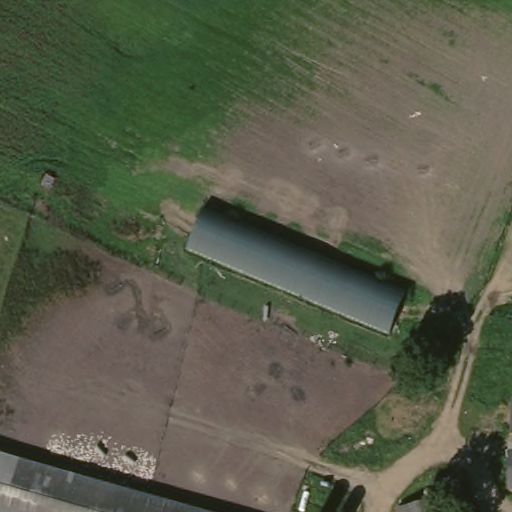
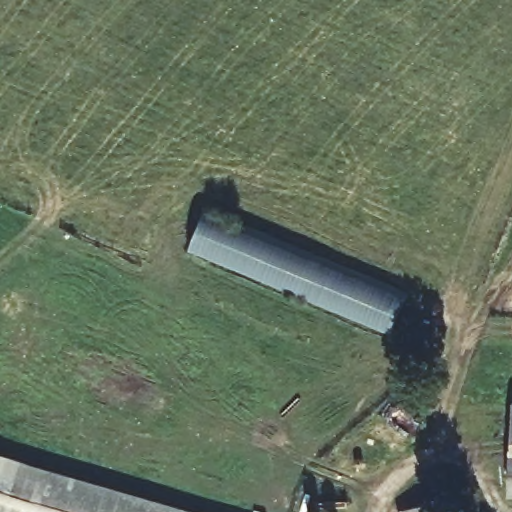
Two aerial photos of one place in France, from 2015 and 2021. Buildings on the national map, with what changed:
unchanged [(203,210),(409,290),(389,337),(187,250),(203,210)]
unchanged [(512,490),(509,490),(508,405),(512,404),(512,490)]
unchanged [(206,512),(0,512),(0,452),(206,512)]
unchanged [(452,512),(404,512),(403,511),(448,498),(452,512)]

